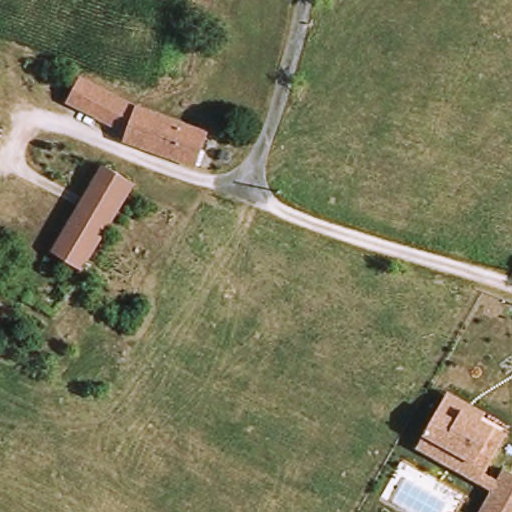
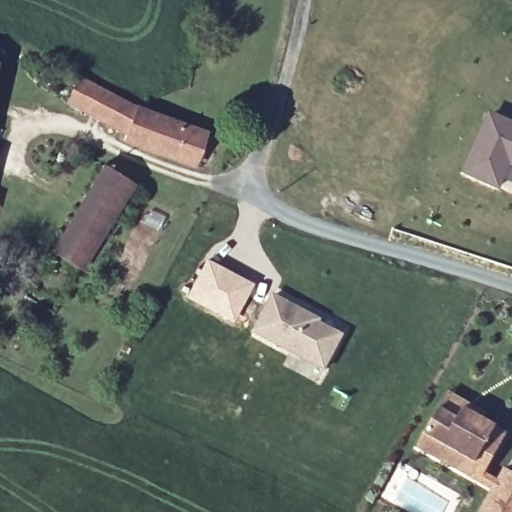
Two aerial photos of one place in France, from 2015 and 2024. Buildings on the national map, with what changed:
unchanged [(135,131),(77,104),(85,84),(209,134),(197,161),(132,136),(135,131)]
new [(488,114),(512,125),(512,165),(507,163),(501,177),(496,185),(463,170),(488,114)]
unchanged [(106,159),(140,179),(60,309),(30,290),(106,159)]
new [(507,163),(512,165),(512,181),(501,177),(507,163)]
new [(205,260),(249,284),(230,319),(186,295),(205,260)]
new [(271,296),(312,318),(311,320),(340,335),(322,369),(252,332),(271,296)]
unchanged [(416,448),(450,391),(490,411),(486,419),(508,432),(488,473),(500,479),(505,468),(512,472),(512,512),(481,512),(491,492),(416,448)]

